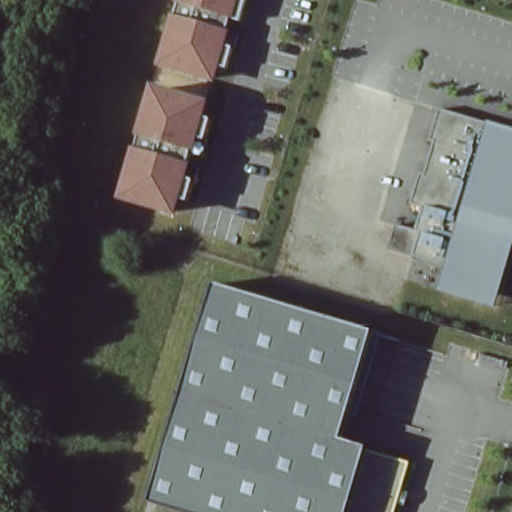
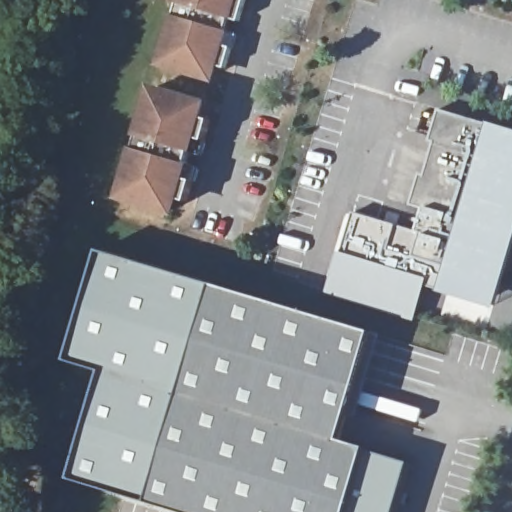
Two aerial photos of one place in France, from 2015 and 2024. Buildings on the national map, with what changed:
unchanged [(240,0),(216,82),(157,67),(175,0),(240,0)]
unchanged [(152,83),(210,99),(177,215),(118,199),(152,83)]
unchanged [(512,130),(512,261),(498,309),(439,291),(445,265),(389,250),(395,224),(416,230),(422,210),(412,207),(421,173),(426,173),(435,144),(430,142),(439,109),(489,123),(512,130)]
new [(389,250),(445,265),(439,291),(427,287),(415,322),(327,295),(340,252),(352,212),(395,224),(389,250)]
new [(147,502),(71,479),(104,372),(68,360),(101,252),(213,285),(147,502)]
unchanged [(213,285),(372,332),(339,438),(366,447),(410,461),(396,512),(181,512),(147,502),(213,285)]

